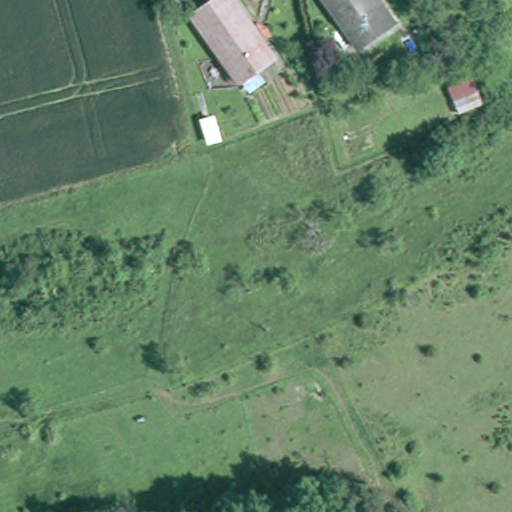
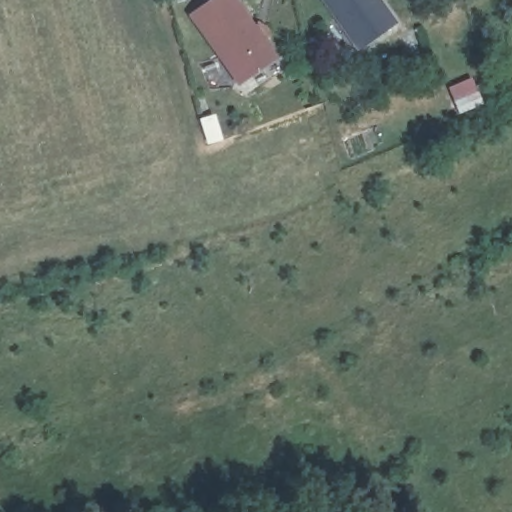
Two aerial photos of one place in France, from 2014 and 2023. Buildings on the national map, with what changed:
unchanged [(243,74),(239,77),(190,9),(202,0),(237,0),(274,52),(271,54),(277,62),(249,82),(243,74)]
unchanged [(362,41),(333,0),(383,0),(396,18),(362,41)]

